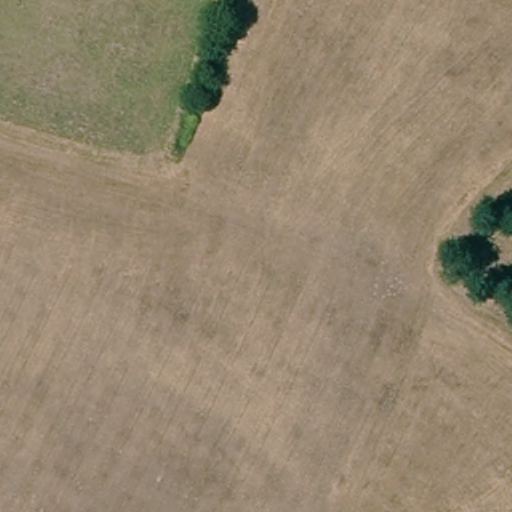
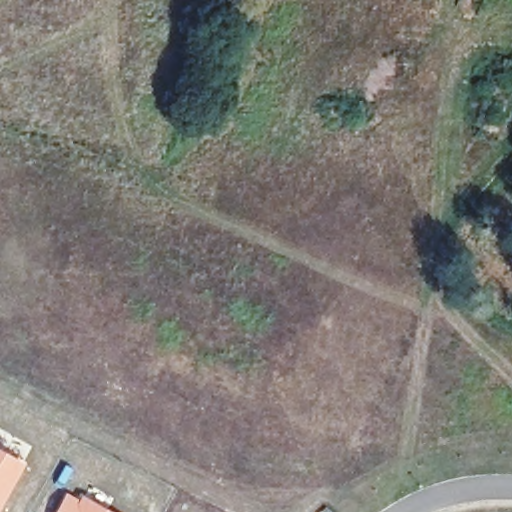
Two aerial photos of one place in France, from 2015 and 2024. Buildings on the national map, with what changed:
new [(0,509),(0,448),(26,463),(0,509)]
new [(79,497),(81,492),(115,512),(54,512),(66,490),(79,497)]

